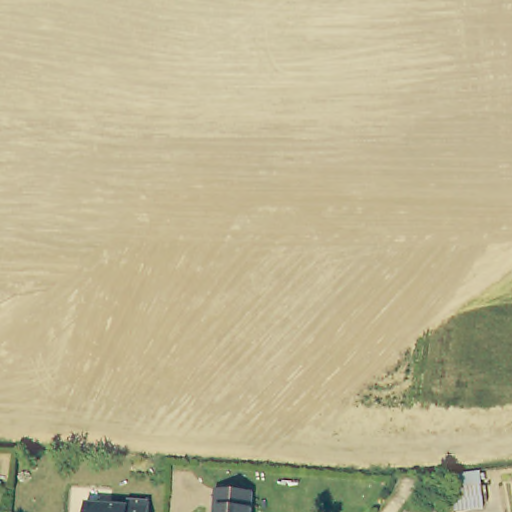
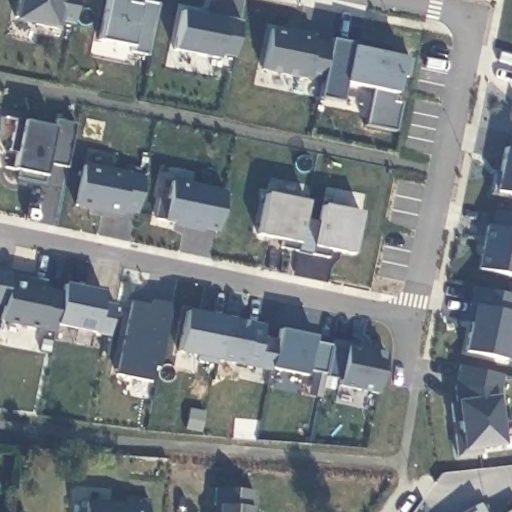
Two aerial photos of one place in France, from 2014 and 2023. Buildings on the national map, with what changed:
new [(79,0),(74,25),(59,21),(58,29),(16,21),(20,0),(79,0)]
new [(129,0),(128,3),(142,6),(143,0),(160,3),(149,55),(132,51),(133,45),(100,38),(108,0),(129,0)]
new [(235,57),(219,54),(218,59),(173,50),(180,10),(227,19),(243,21),(235,57)]
new [(287,31),(287,28),(316,36),(315,38),(332,41),(352,46),(404,57),(412,59),(408,77),(400,76),(396,93),(392,102),(400,104),(394,131),(366,125),(376,89),(344,83),(340,102),(318,97),(321,83),(263,71),(270,28),(287,31)]
new [(69,169),(51,164),(47,177),(45,185),(16,179),(18,170),(13,168),(18,152),(11,150),(18,118),(26,120),(56,126),(58,119),(78,124),(69,169)]
new [(492,191),(494,175),(499,176),(505,146),(510,147),(512,139),(512,195),(495,191),(492,191)]
new [(137,213),(124,211),(122,216),(77,208),(85,164),(144,176),(137,213)]
new [(217,234),(203,231),(202,234),(173,228),(175,224),(153,220),(158,198),(170,199),(173,180),(225,190),(217,234)]
new [(299,243),(297,251),(281,247),(283,241),(257,235),(266,193),(309,201),(299,243)]
new [(353,255),(333,250),(330,259),(311,254),(314,245),(322,203),(362,212),(353,255)]
new [(486,224),(490,225),(493,211),(512,215),(512,276),(477,270),(486,224)]
new [(110,336),(96,333),(56,326),(53,333),(0,322),(4,307),(0,307),(0,272),(46,282),(45,286),(61,290),(62,284),(104,292),(103,303),(116,305),(110,336)]
new [(464,352),(470,324),(462,322),(470,287),(512,294),(512,330),(506,359),(464,352)]
new [(159,368),(152,367),(146,397),(126,394),(130,378),(117,375),(132,301),(149,304),(151,299),(173,304),(159,368)]
new [(378,394),(339,387),(340,379),(308,371),(307,376),(271,369),(179,352),(186,310),(267,326),(265,336),(276,339),(279,329),(316,336),(315,341),(332,344),(333,341),(351,346),(384,352),(378,394)]
new [(498,396),(504,446),(481,449),(482,455),(455,458),(452,434),(460,432),(459,422),(451,423),(449,403),(455,402),(454,387),(458,367),(501,375),(498,396)]
unchanged [(251,487),(250,512),(216,512),(216,500),(212,500),(213,484),(251,487)]
unchanged [(147,512),(84,512),(84,498),(125,500),(125,495),(147,496),(147,512)]
new [(468,510),(479,505),(483,512),(470,512),(468,510)]
new [(512,510),(512,512),(508,512),(512,510)]

